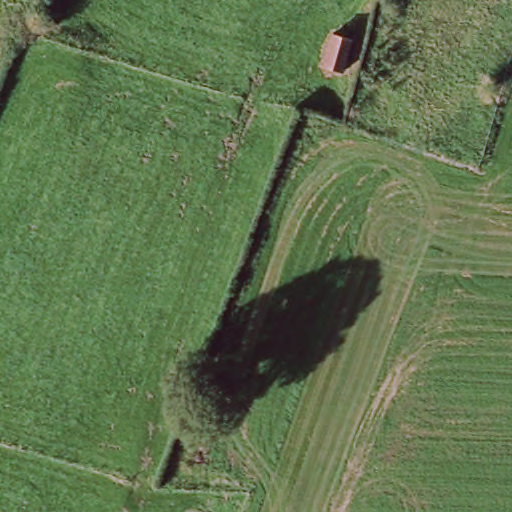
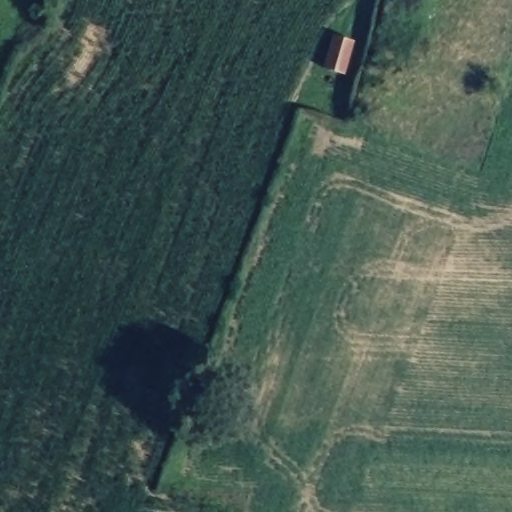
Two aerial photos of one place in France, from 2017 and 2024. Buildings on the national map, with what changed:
unchanged [(352,43),(342,76),(324,71),(333,38),(352,43)]

